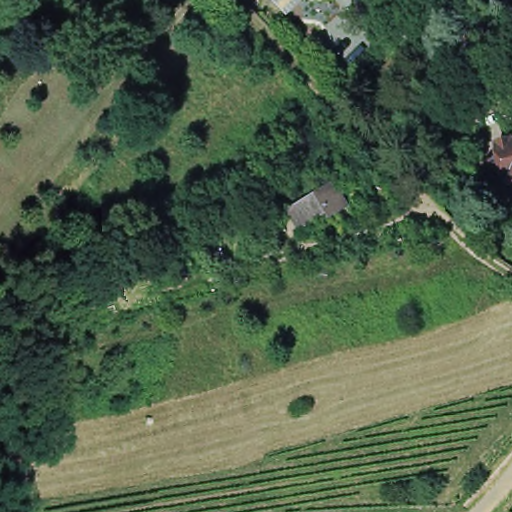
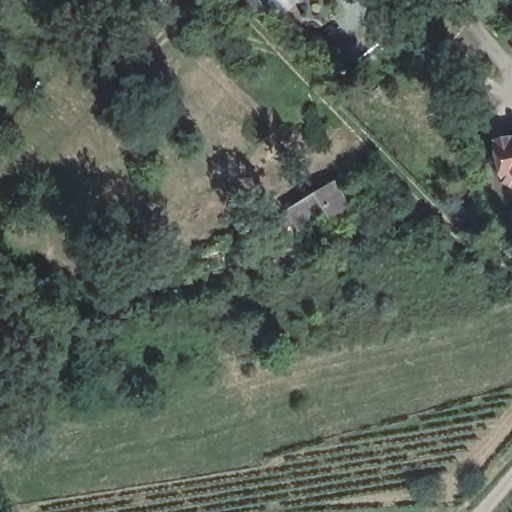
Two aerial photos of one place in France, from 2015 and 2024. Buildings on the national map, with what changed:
unchanged [(499,145),(512,142),(512,182),(509,182),(499,145)]
unchanged [(333,210),(300,230),(292,217),(325,197),(333,210)]

